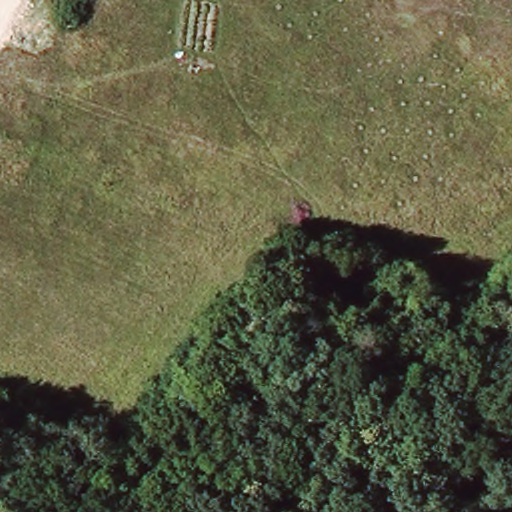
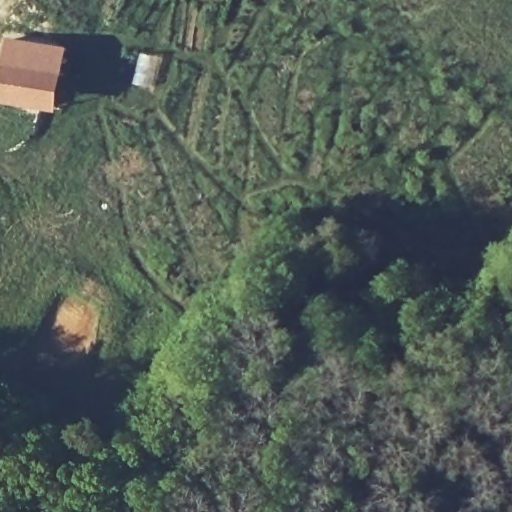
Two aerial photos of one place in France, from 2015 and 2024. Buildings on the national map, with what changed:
new [(69,46),(59,113),(0,106),(0,64),(4,36),(69,46)]
new [(139,51),(164,57),(155,90),(132,84),(139,51)]

